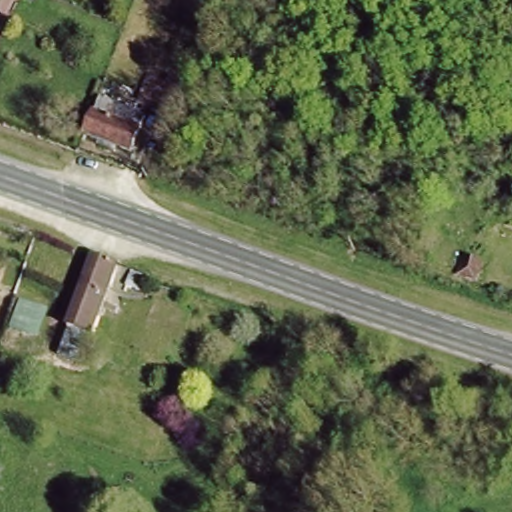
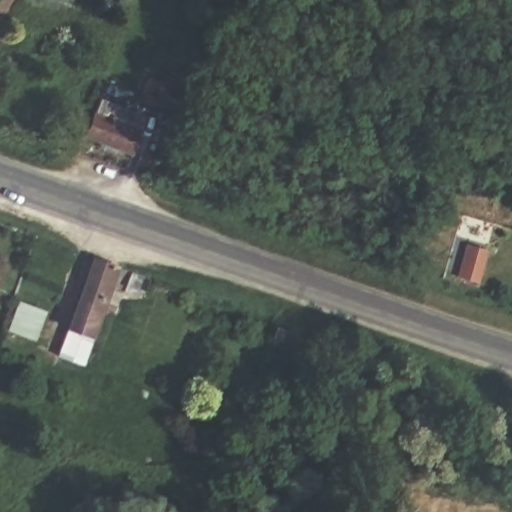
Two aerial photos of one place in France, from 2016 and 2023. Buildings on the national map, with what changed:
unchanged [(174,114),(140,101),(149,77),(169,85),(171,79),(185,85),(174,114)]
unchanged [(103,100),(146,117),(133,152),(89,135),(103,100)]
unchanged [(90,248),(115,257),(89,332),(85,331),(76,355),(55,348),(64,323),(90,248)]
unchanged [(465,260),(484,267),(479,284),(459,277),(465,260)]

